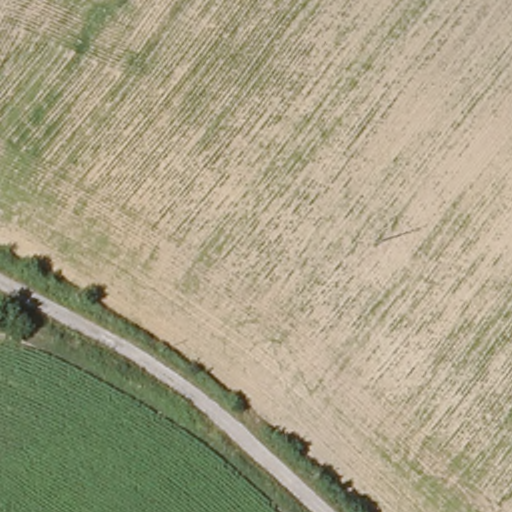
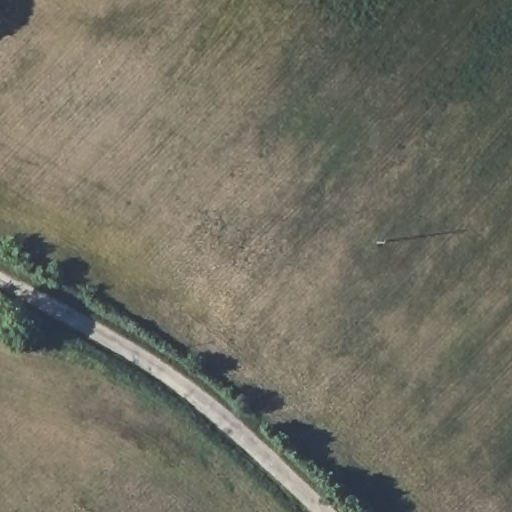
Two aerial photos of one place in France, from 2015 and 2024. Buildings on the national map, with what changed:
[]

